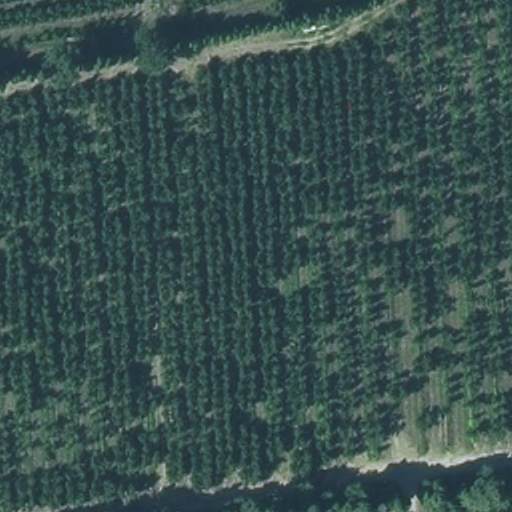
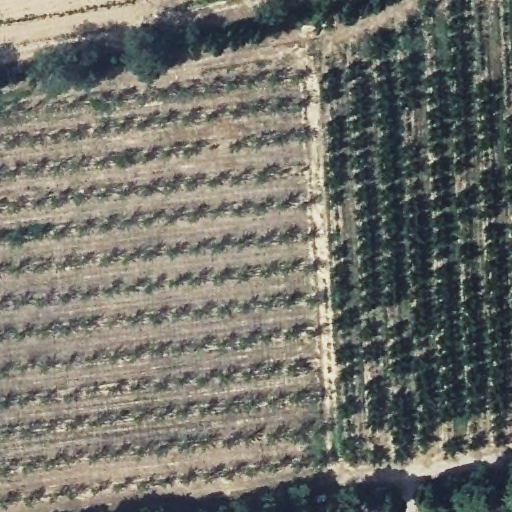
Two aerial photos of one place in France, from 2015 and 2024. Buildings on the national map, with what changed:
unchanged [(277,38),(320,30),(321,42),(279,49),(277,38)]

